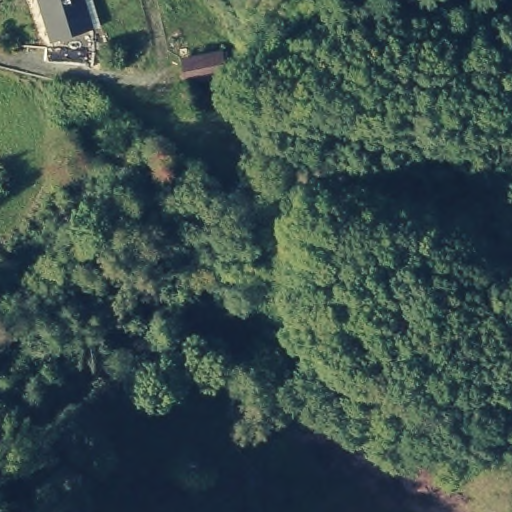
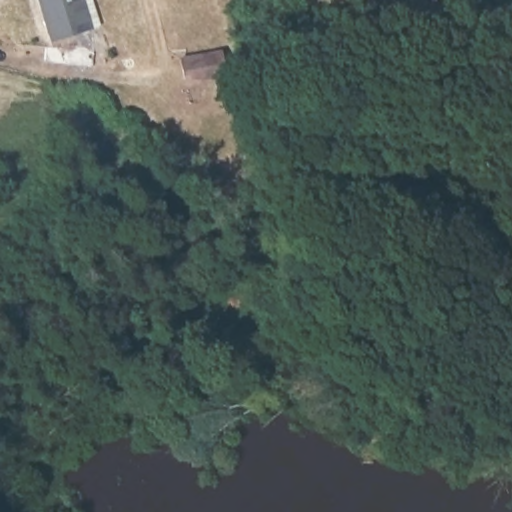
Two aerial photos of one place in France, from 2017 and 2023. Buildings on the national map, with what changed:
unchanged [(94,29),(51,42),(37,0),(83,0),(94,29)]
unchanged [(220,50),(225,75),(183,84),(178,60),(220,50)]

